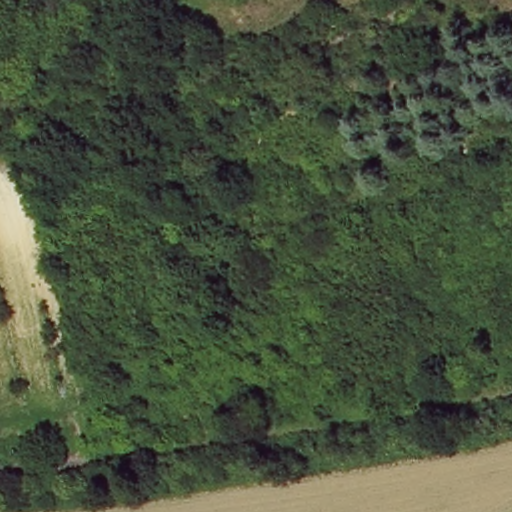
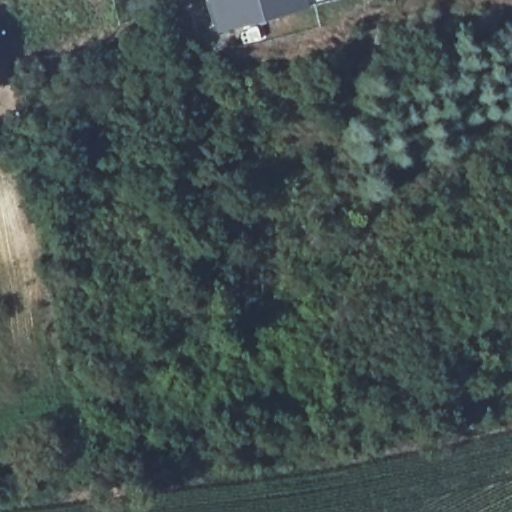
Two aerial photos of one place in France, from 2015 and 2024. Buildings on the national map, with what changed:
new [(314,3),(275,13),(208,29),(200,0),(324,0),(314,3)]

